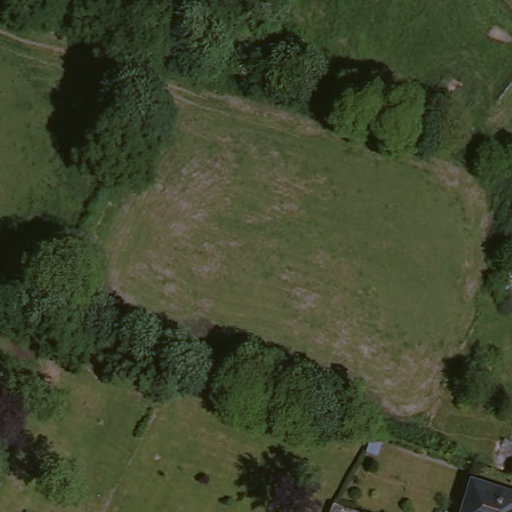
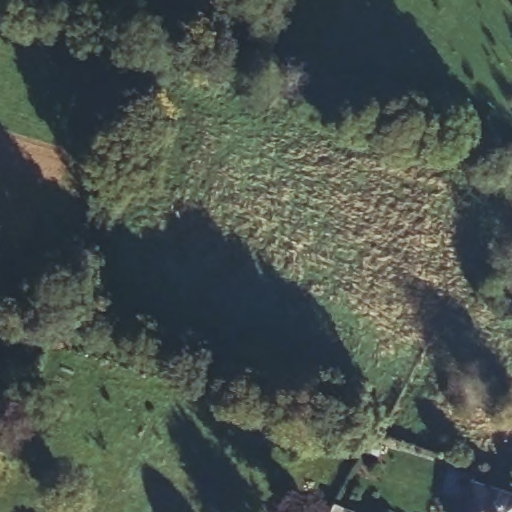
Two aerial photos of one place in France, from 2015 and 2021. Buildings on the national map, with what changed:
unchanged [(512,493),(512,512),(463,512),(473,480),(512,493)]

